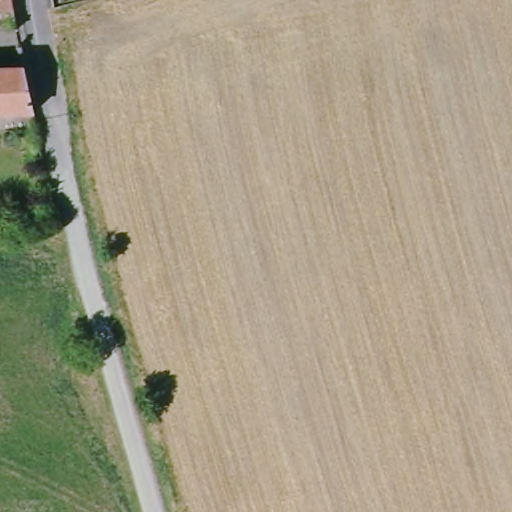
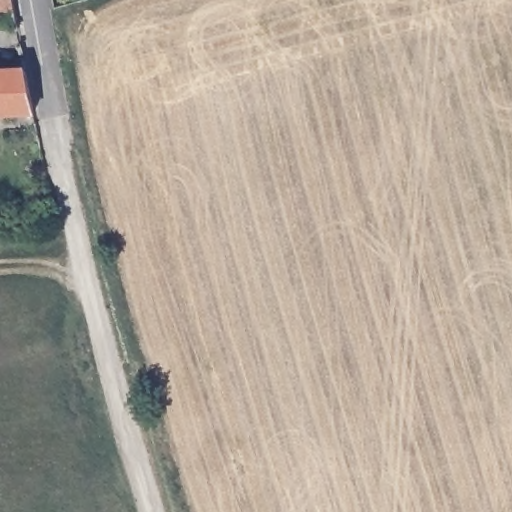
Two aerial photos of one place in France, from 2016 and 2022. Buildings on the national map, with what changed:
unchanged [(0,12),(0,0),(7,0),(10,12),(0,12)]
unchanged [(10,56),(18,55),(24,81),(30,111),(0,113),(0,66),(2,66),(4,59),(10,56)]

